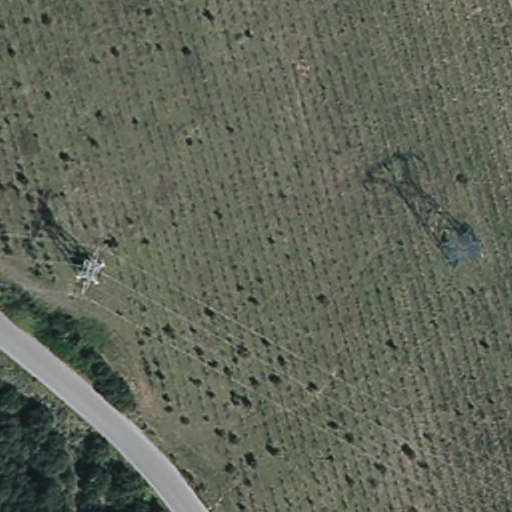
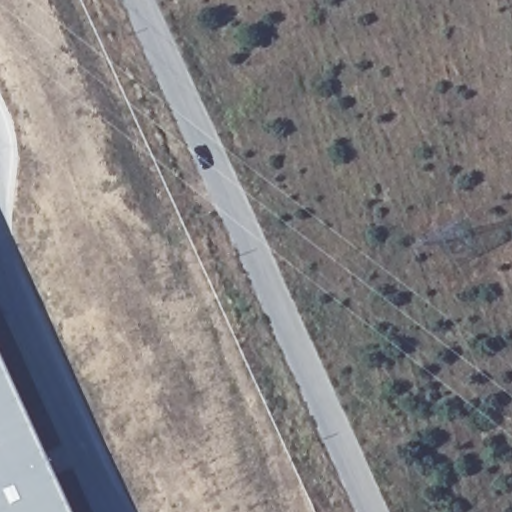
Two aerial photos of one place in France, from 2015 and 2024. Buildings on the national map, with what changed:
new [(64,512),(0,512),(0,372),(64,512)]

